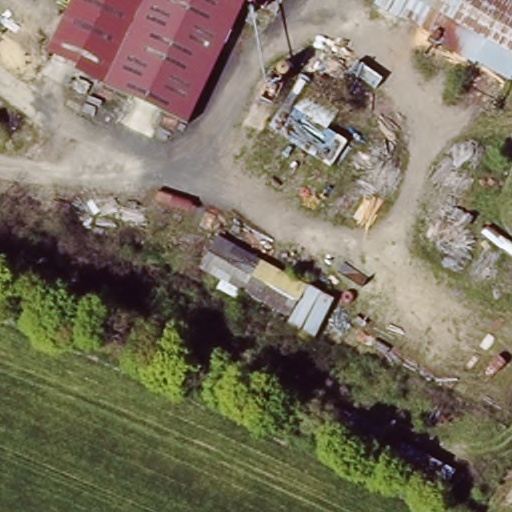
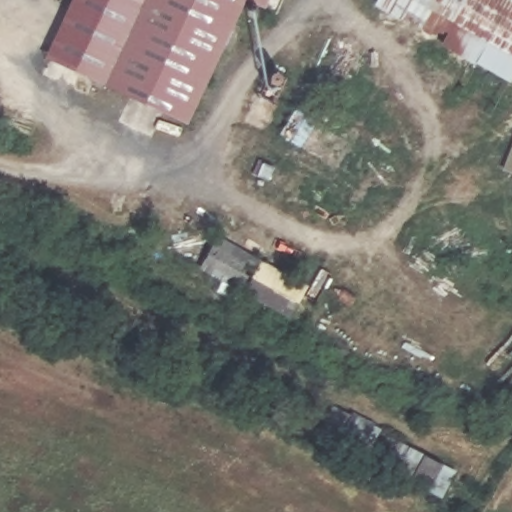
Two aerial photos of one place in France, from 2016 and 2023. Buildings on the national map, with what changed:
unchanged [(263,9),(248,1),(188,123),(49,57),(76,0),(267,0),(263,9)]
unchanged [(512,74),(379,7),(382,0),(512,0),(512,74)]
unchanged [(314,79),(307,92),(337,108),(326,130),(347,141),(331,167),(268,127),(299,71),(314,79)]
unchanged [(512,172),(501,168),(512,135),(512,172)]
unchanged [(309,286),(301,297),(315,304),(303,325),(200,270),(218,235),(309,286)]
unchanged [(429,498),(394,476),(404,449),(446,468),(429,498)]

